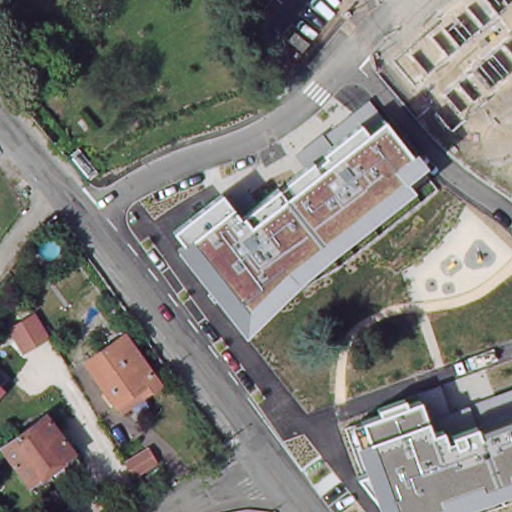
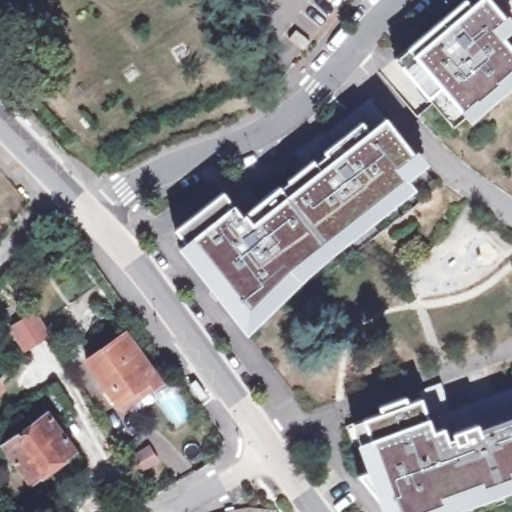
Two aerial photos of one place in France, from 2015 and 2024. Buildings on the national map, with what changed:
new [(464,0),(466,0),(469,6),(477,0),(488,0),(503,17),(506,14),(512,21),(512,29),(503,36),(512,49),(512,86),(468,122),(440,88),(426,99),(394,59),(464,0)]
unchanged [(177,247),(184,242),(174,230),(221,193),(241,218),(243,215),(304,167),(294,155),(322,132),(325,135),(369,99),(383,118),(409,154),(414,151),(426,166),(407,181),(414,190),(299,282),(245,334),(177,247)]
demolished [(149,234),(139,240),(138,241),(135,243),(132,239),(125,228),(129,225),(140,219),(149,234)]
new [(38,315),(51,336),(27,350),(15,329),(38,315)]
unchanged [(88,362),(127,334),(160,380),(143,392),(138,385),(122,397),(113,385),(108,389),(88,362)]
unchanged [(4,388),(0,392),(0,385),(4,388)]
unchanged [(356,477),(368,472),(351,424),(378,413),(377,408),(404,398),(406,403),(420,398),(418,393),(440,385),(449,412),(512,389),(512,489),(452,512),(380,512),(375,496),(356,477)]
unchanged [(76,450),(32,483),(5,446),(49,413),(76,450)]

